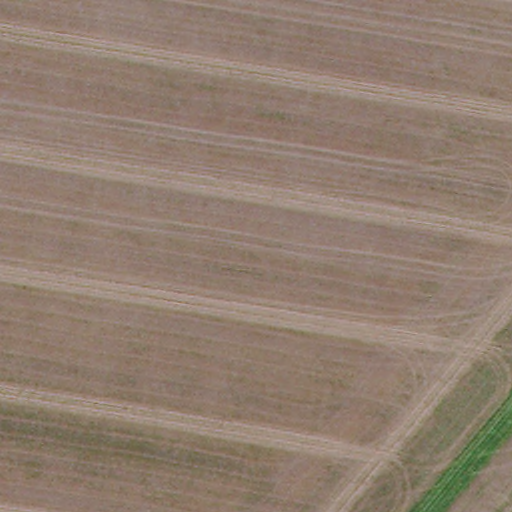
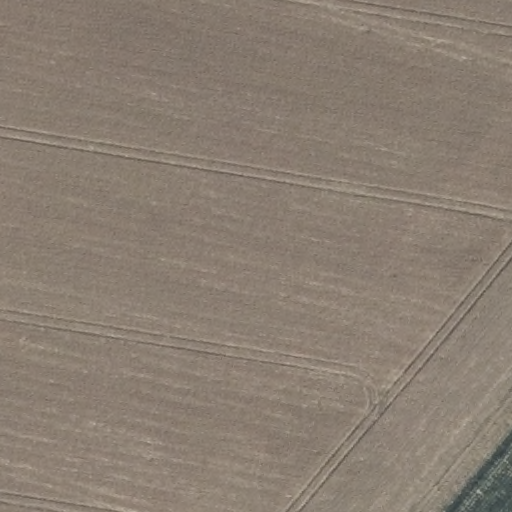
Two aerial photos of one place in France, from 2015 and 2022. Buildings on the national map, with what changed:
[]

